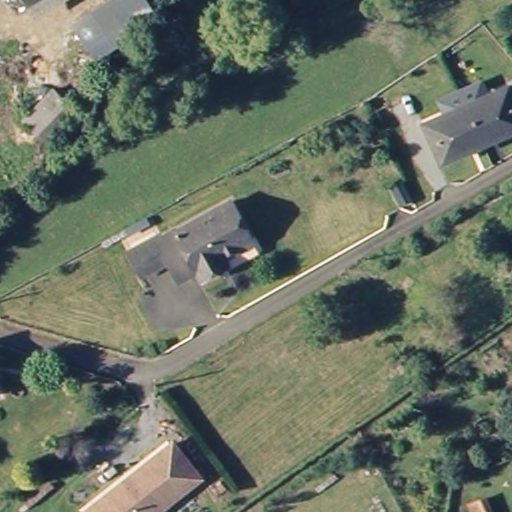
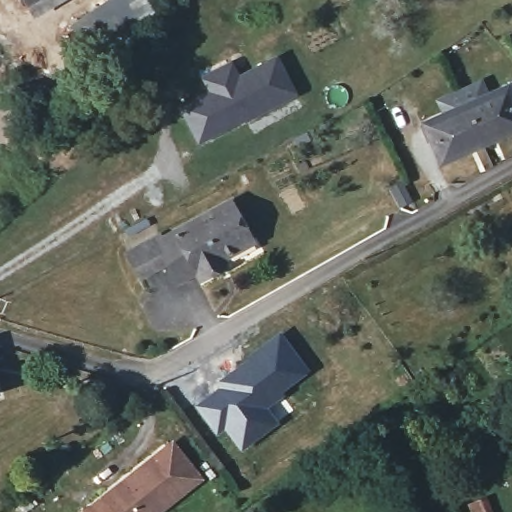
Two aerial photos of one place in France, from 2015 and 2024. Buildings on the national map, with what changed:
unchanged [(25,7),(22,0),(38,0),(25,7)]
unchanged [(38,0),(71,0),(33,21),(25,7),(38,0)]
unchanged [(163,25),(108,63),(75,23),(110,0),(146,0),(163,25)]
new [(198,75),(226,61),(234,78),(273,59),(284,81),(292,96),(270,108),(255,115),(247,113),(240,117),(241,120),(194,144),(176,108),(206,92),(198,75)]
unchanged [(436,149),(427,125),(467,107),(507,88),(512,99),(512,135),(485,146),(475,151),(444,164),(436,149)]
unchanged [(24,122),(58,91),(82,116),(50,149),(24,122)]
unchanged [(136,254),(161,240),(165,246),(236,205),(257,245),(229,261),(233,268),(210,280),(206,275),(185,285),(173,263),(146,277),(136,254)]
new [(220,377),(280,330),(311,371),(283,394),(294,410),(272,430),(240,453),(224,431),(217,436),(192,405),(220,377)]
unchanged [(179,443),(205,479),(165,512),(93,512),(99,506),(179,443)]
unchanged [(486,512),(469,512),(465,505),(479,497),(485,510),(486,512)]

